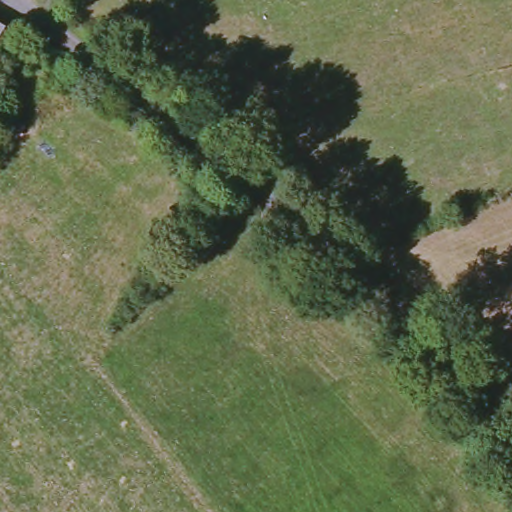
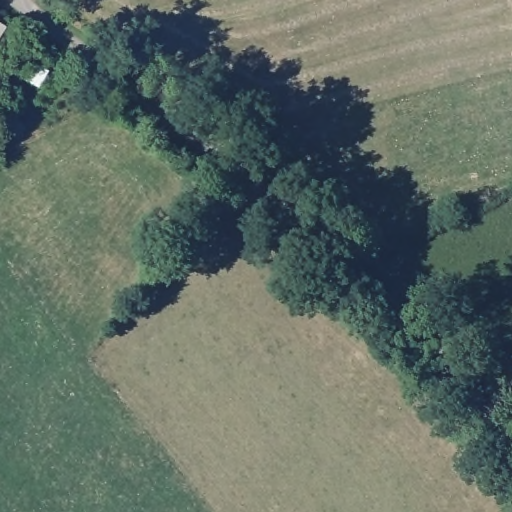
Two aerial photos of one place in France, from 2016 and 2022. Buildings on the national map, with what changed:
unchanged [(4,50),(0,48),(0,18),(14,26),(4,50)]

